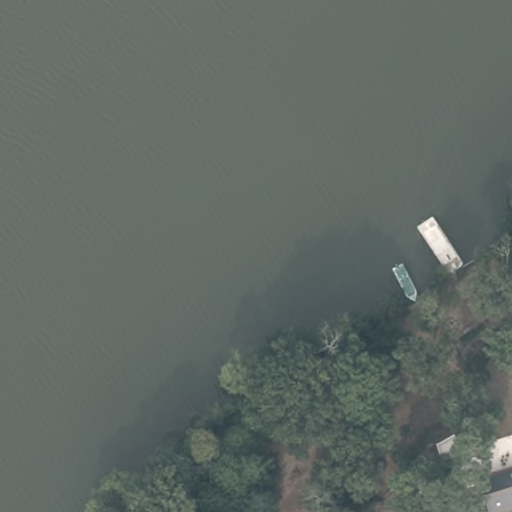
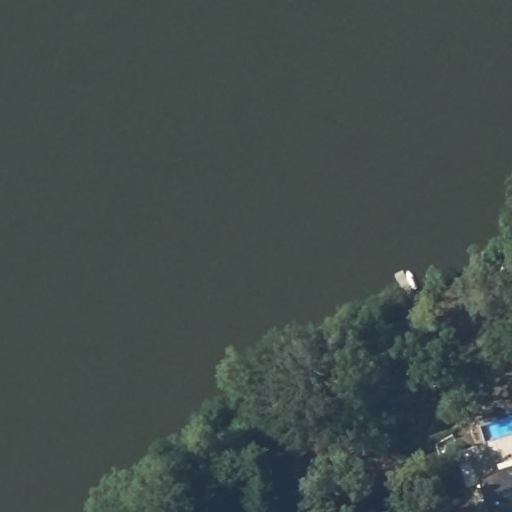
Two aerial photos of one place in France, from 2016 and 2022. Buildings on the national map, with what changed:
unchanged [(476,482),(512,466),(512,512),(511,512),(488,512),(476,482)]

